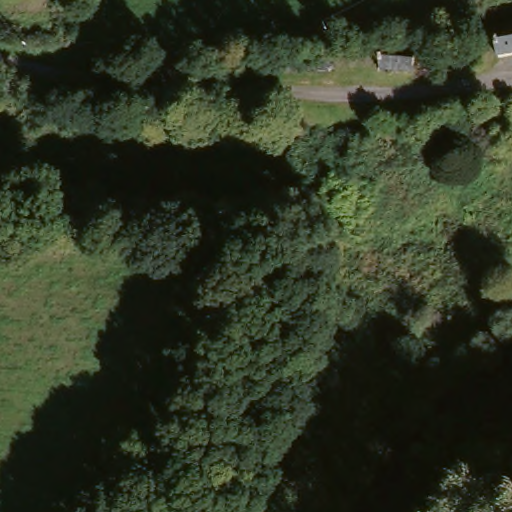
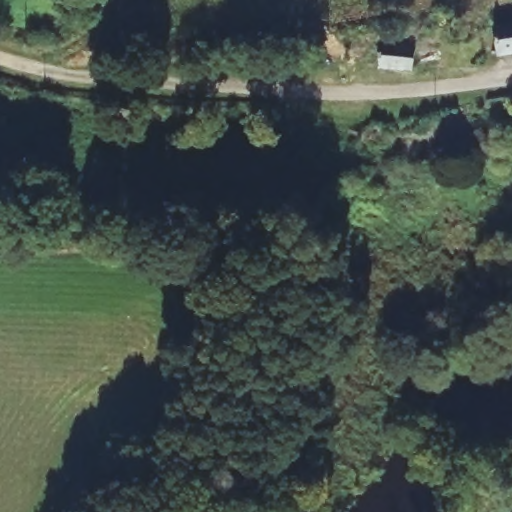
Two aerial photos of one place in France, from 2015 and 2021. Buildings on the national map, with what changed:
unchanged [(497,57),(492,30),(512,26),(512,55),(497,57)]
unchanged [(413,79),(384,77),(386,52),(414,54),(413,79)]

